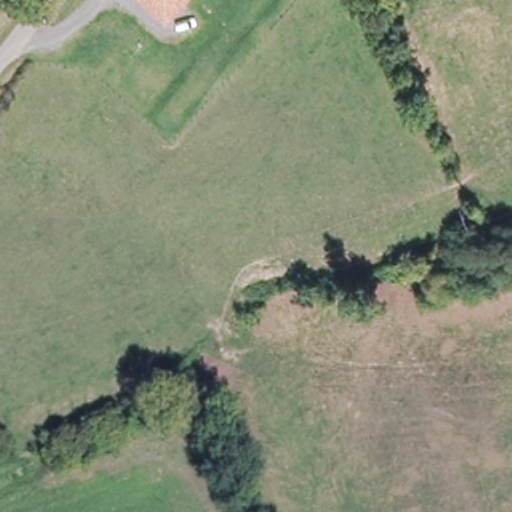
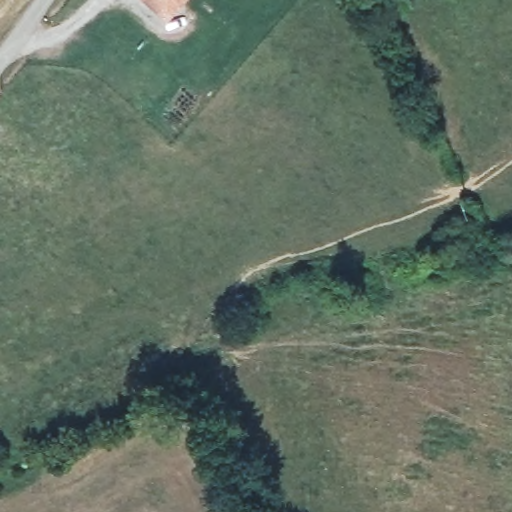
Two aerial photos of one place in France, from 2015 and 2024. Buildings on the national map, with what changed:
unchanged [(140,0),(178,0),(163,19),(140,0)]

